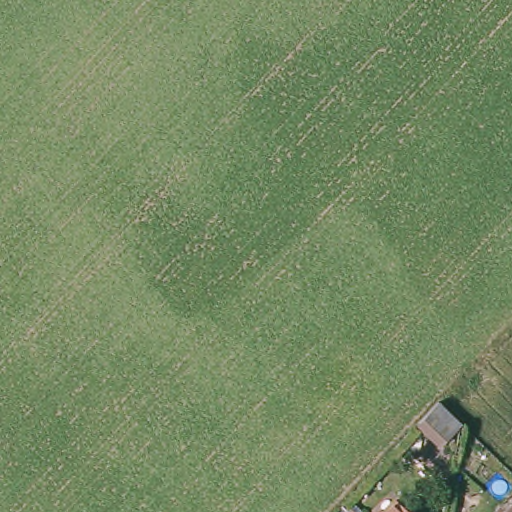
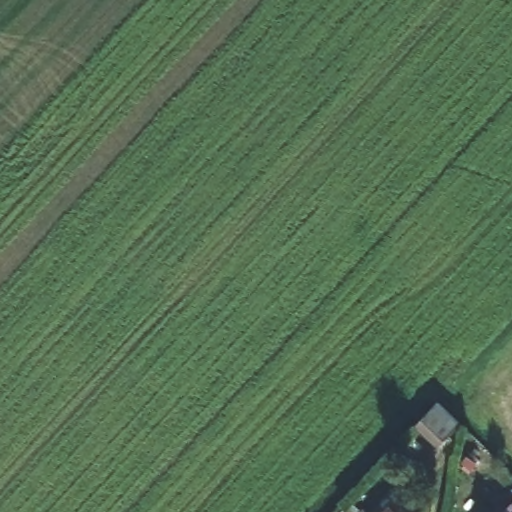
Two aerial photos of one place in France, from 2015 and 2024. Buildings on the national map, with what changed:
unchanged [(462,434),(439,457),(415,435),(437,411),(462,434)]
unchanged [(374,512),(386,499),(400,512),(374,512)]
unchanged [(512,512),(498,512),(508,502),(512,505),(512,512)]
unchanged [(343,512),(338,512),(341,510),(343,512)]

